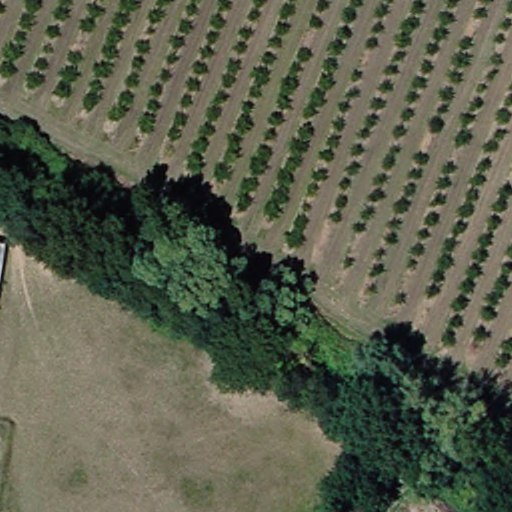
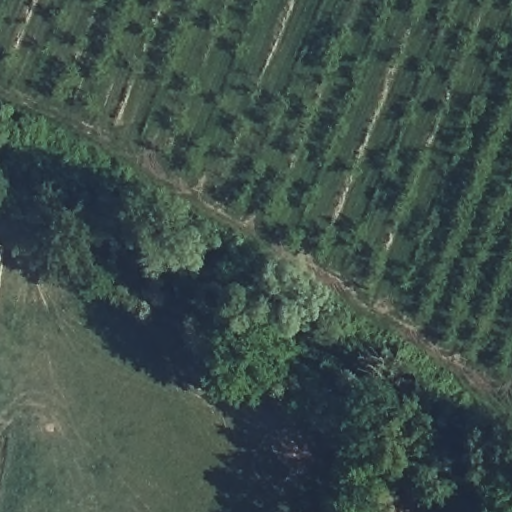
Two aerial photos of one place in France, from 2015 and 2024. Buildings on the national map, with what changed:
unchanged [(0,300),(0,246),(9,247),(0,300)]

